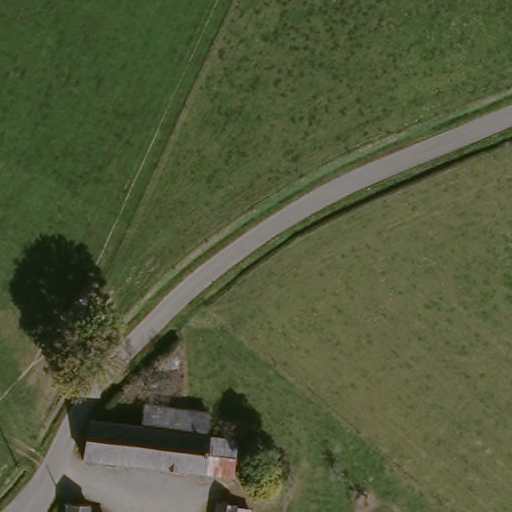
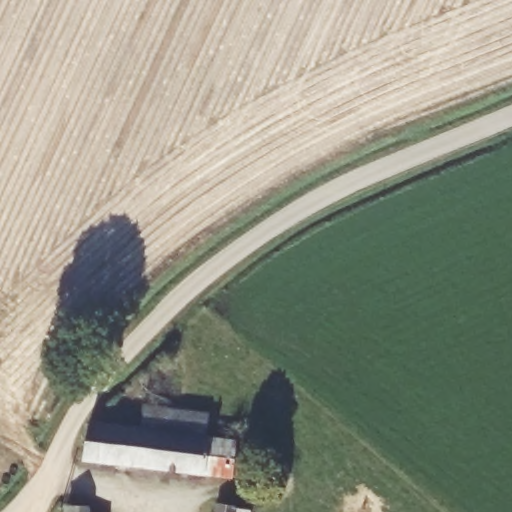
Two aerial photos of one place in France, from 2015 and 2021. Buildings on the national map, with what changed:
unchanged [(84,429),(137,434),(139,413),(203,420),(202,442),(232,447),(228,483),(81,467),(84,429)]
unchanged [(228,512),(212,512),(213,510),(228,512)]
unchanged [(64,512),(58,512),(59,511),(64,512)]

